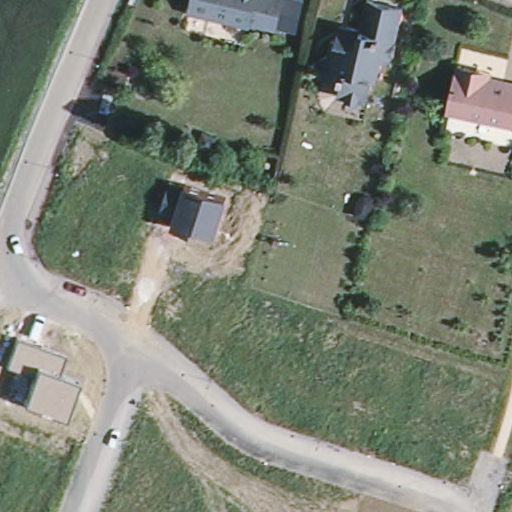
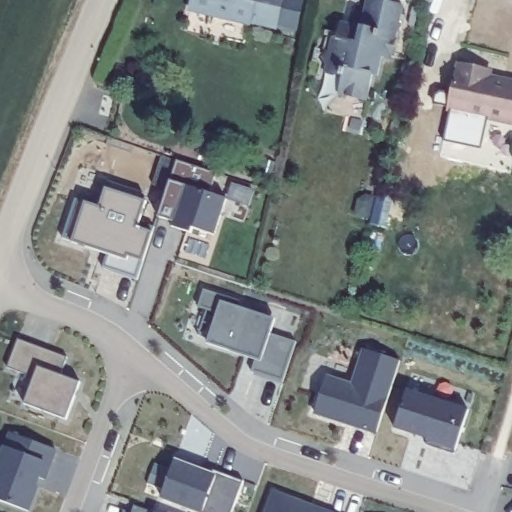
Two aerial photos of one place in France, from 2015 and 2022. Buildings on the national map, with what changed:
unchanged [(281,0),(274,29),(249,21),(246,29),(190,12),(193,0),(281,0)]
unchanged [(323,30),(330,30),(335,15),(349,17),(354,0),(395,0),(381,47),(376,47),(368,66),(361,66),(352,94),(328,85),(333,67),(315,60),(317,50),(323,30)]
unchanged [(451,111),(461,66),(480,71),(492,74),(490,80),(512,85),(512,127),(451,111)]
unchanged [(96,205),(104,180),(140,191),(137,199),(143,200),(142,203),(136,221),(151,226),(134,279),(99,267),(107,244),(91,239),(88,247),(59,238),(71,198),(96,205)]
unchanged [(181,195),(184,188),(225,201),(213,237),(193,232),(192,235),(170,228),(175,216),(160,211),(166,188),(181,195)]
new [(251,372),(255,357),(206,342),(208,336),(198,333),(206,308),(197,306),(202,289),(239,300),(238,306),(274,317),(270,332),(295,340),(281,383),(251,372)]
unchanged [(66,356),(59,375),(78,382),(65,418),(25,404),(35,376),(8,366),(17,340),(66,356)]
new [(311,411),(322,376),(350,385),(361,348),(397,360),(374,431),(357,426),(346,422),(311,411)]
new [(404,389),(468,408),(456,449),(392,430),(404,389)]
unchanged [(53,449),(41,479),(35,477),(33,485),(35,486),(26,511),(0,502),(0,454),(8,432),(53,449)]
new [(202,511),(202,512),(191,512),(160,500),(174,460),(200,469),(201,466),(243,480),(232,512),(204,512),(202,511)]
new [(271,491),(295,500),(293,505),(314,512),(263,512),(271,491)]
new [(131,505),(151,512),(129,512),(131,505)]
new [(323,510),(328,512),(322,512),(323,510)]

